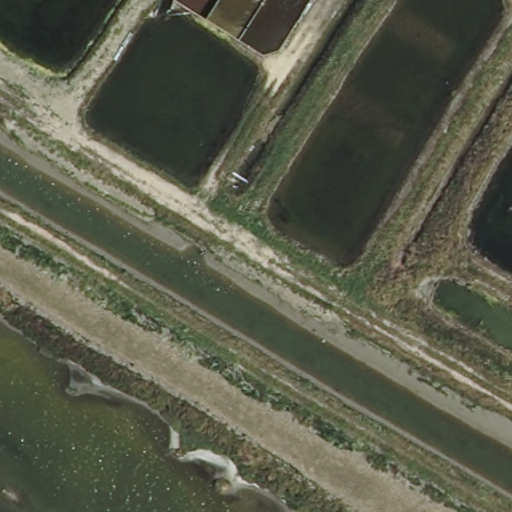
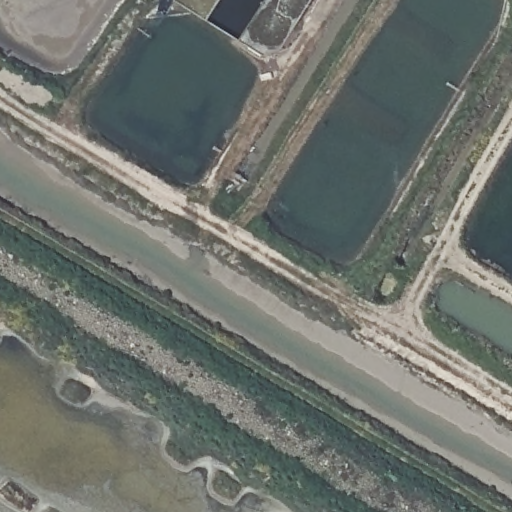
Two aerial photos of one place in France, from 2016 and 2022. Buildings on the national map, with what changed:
[]

